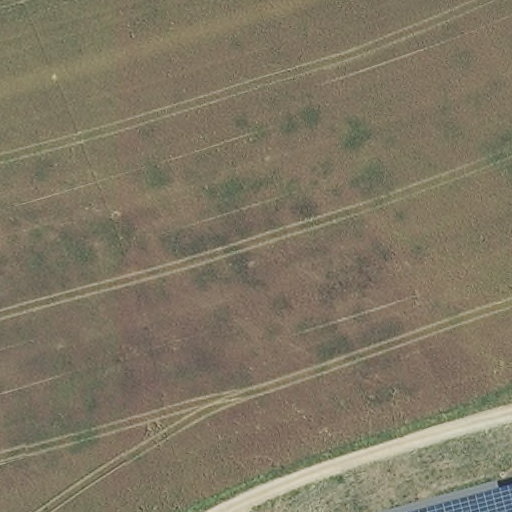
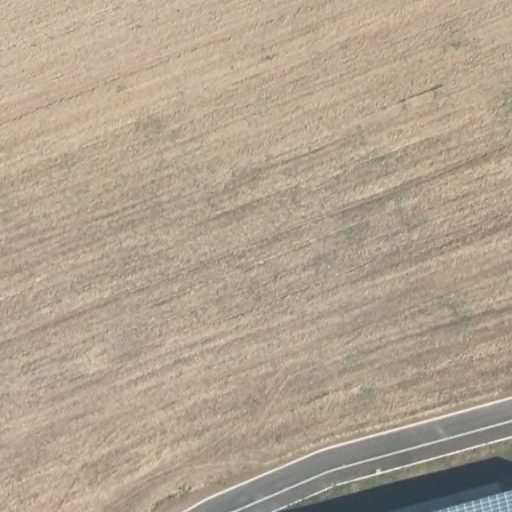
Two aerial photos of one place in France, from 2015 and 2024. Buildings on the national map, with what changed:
unchanged [(512,512),(425,512),(512,488),(512,512)]

